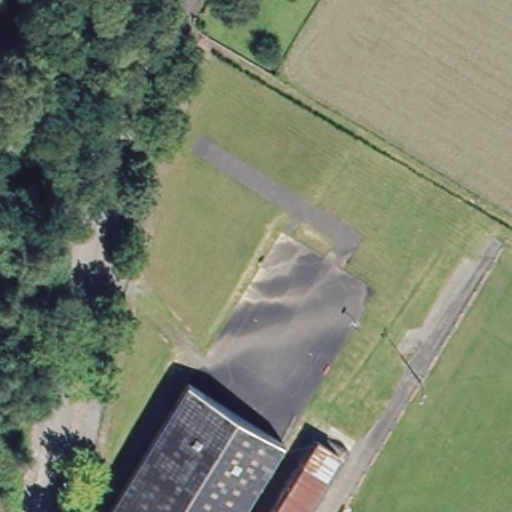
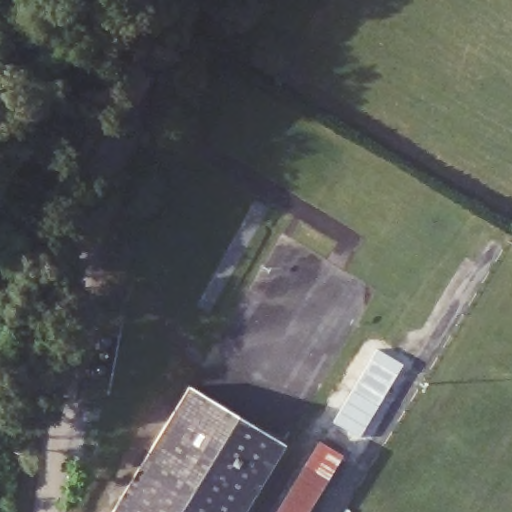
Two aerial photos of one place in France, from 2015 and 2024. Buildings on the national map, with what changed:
new [(360,436),(334,421),(377,348),(396,374),(360,436)]
unchanged [(190,386),(285,444),(243,512),(113,512),(190,386)]
unchanged [(312,432),(317,435),(322,428),(345,442),(303,512),(264,512),(312,432)]

